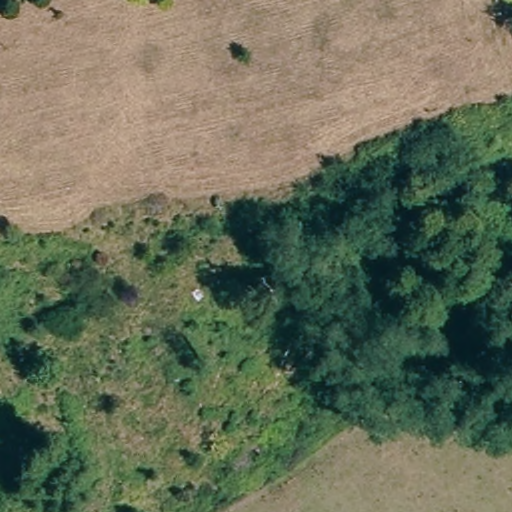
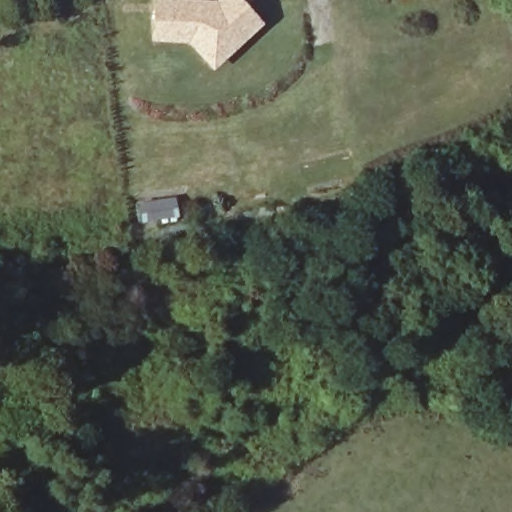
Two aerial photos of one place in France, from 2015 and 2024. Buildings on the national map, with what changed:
new [(212,68),(188,42),(151,40),(151,0),(243,0),(263,24),(212,68)]

